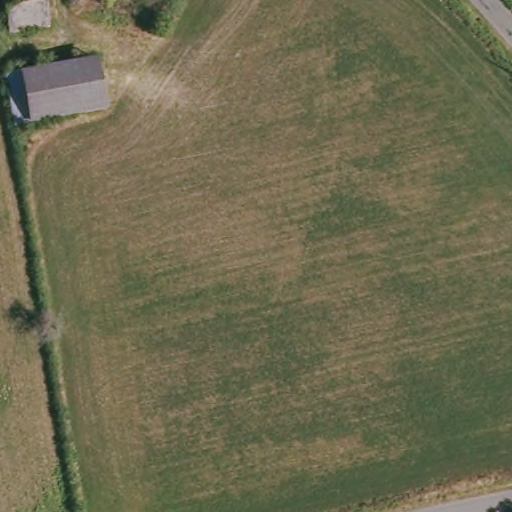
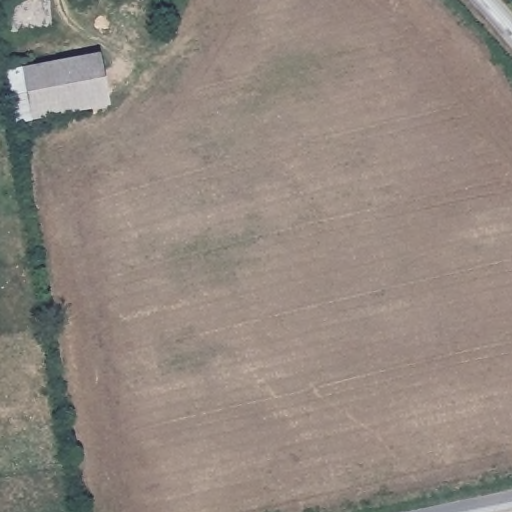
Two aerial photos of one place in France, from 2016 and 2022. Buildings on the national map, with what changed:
unchanged [(9,27),(6,0),(46,0),(49,23),(9,27)]
unchanged [(95,108),(21,120),(14,80),(13,70),(88,57),(89,70),(95,108)]

